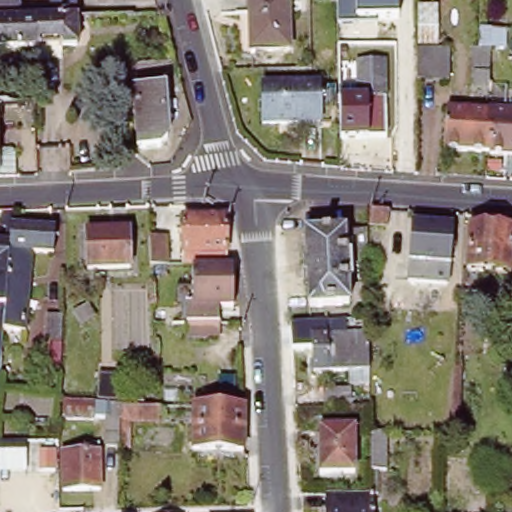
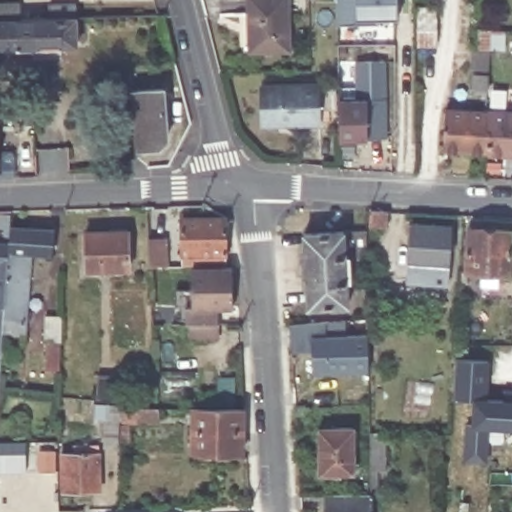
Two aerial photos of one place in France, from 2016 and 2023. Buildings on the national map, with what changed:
unchanged [(288,48),(250,48),(249,0),(287,0),(288,48)]
unchanged [(400,21),(336,25),(336,0),(399,0),(400,21)]
unchanged [(71,8),(71,20),(78,20),(78,28),(72,28),(72,49),(0,52),(0,8),(15,7),(15,22),(46,21),(47,9),(71,8)]
demolished [(412,79),(412,76),(411,48),(446,48),(446,75),(446,78),(412,79)]
unchanged [(366,64),(367,76),(385,76),(385,142),(340,143),(339,103),(358,102),(358,65),(366,64)]
unchanged [(317,83),(319,122),(263,123),(262,85),(317,83)]
unchanged [(158,90),(162,142),(154,150),(131,150),(128,92),(158,90)]
unchanged [(35,101),(35,126),(21,126),(21,102),(35,101)]
unchanged [(486,111),(488,111),(487,130),(491,130),(490,152),(444,150),(447,108),(486,111)]
unchanged [(490,152),(491,130),(487,130),(488,111),(512,112),(512,154),(490,152)]
unchanged [(384,214),(383,230),(362,228),(363,213),(384,214)]
unchanged [(226,215),(226,263),(193,264),(182,264),(182,218),(226,215)]
unchanged [(452,224),(450,263),(447,263),(446,273),(441,275),(425,274),(426,262),(410,260),(412,221),(452,224)]
unchanged [(512,229),(512,257),(511,271),(472,270),(471,296),(460,296),(461,284),(461,270),(466,270),(470,226),(512,229)]
unchanged [(55,231),(53,256),(30,255),(27,330),(3,329),(8,246),(10,227),(55,231)]
unchanged [(127,230),(127,266),(86,267),(86,231),(127,230)]
unchanged [(301,280),(296,280),(295,269),(300,269),(299,237),(360,233),(360,264),(337,265),(340,303),(340,307),(303,310),(303,305),(301,280)]
unchanged [(167,235),(168,264),(150,264),(150,235),(167,235)]
unchanged [(0,371),(0,245),(8,246),(3,329),(0,371)]
unchanged [(186,336),(185,322),(187,322),(187,306),(194,307),(193,267),(232,266),(232,306),(219,306),(220,322),(214,322),(215,336),(186,336)]
unchanged [(61,314),(61,339),(45,339),(45,313),(61,314)]
unchanged [(366,322),(369,367),(358,368),(358,378),(346,379),(345,369),(318,371),(316,371),(315,336),(307,336),(306,326),(315,325),(366,322)]
new [(486,398),(512,400),(512,429),(486,427),(486,462),(463,461),(466,423),(471,423),(473,397),(454,396),(456,358),(488,360),(486,398)]
unchanged [(114,380),(111,406),(93,404),(95,378),(114,380)]
unchanged [(138,399),(138,408),(124,407),(125,398),(138,399)]
unchanged [(98,447),(99,424),(58,420),(58,406),(112,411),(111,425),(110,447),(98,447)]
unchanged [(151,412),(188,413),(188,427),(117,427),(117,412),(151,412)]
unchanged [(238,413),(237,456),(188,455),(188,427),(188,413),(238,413)]
unchanged [(355,428),(357,471),(325,473),(322,474),(320,430),(321,430),(355,428)]
unchanged [(50,449),(48,488),(31,488),(33,449),(50,449)]
unchanged [(95,456),(95,493),(57,492),(58,455),(95,456)]
unchanged [(375,498),(374,512),(326,512),(326,497),(373,498),(375,498)]

